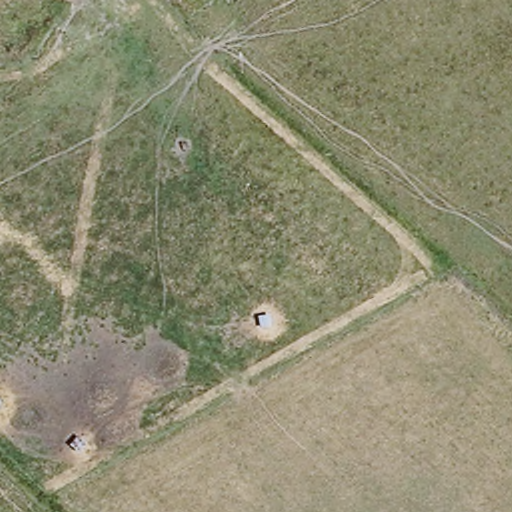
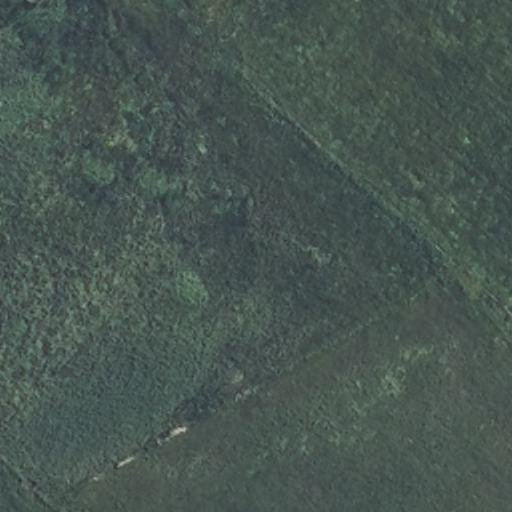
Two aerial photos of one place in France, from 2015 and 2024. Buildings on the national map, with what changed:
[]

